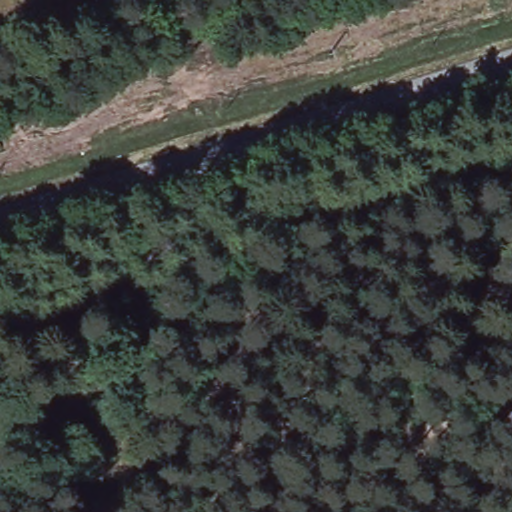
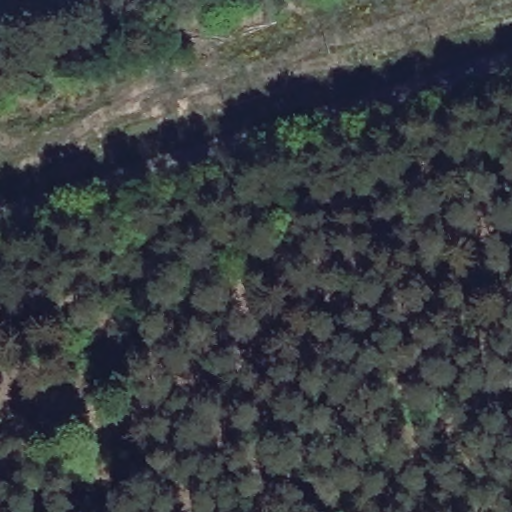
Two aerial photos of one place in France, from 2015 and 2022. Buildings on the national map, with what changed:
[]

